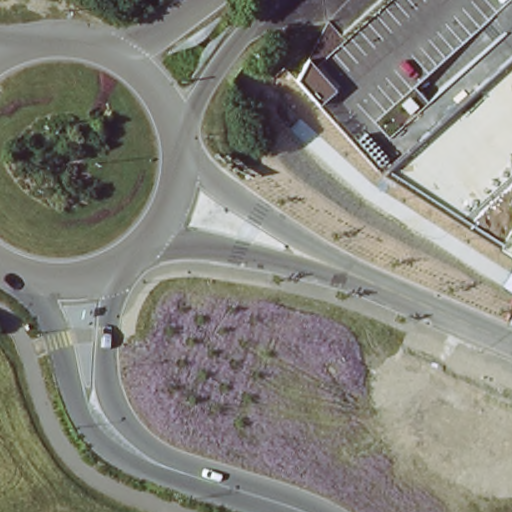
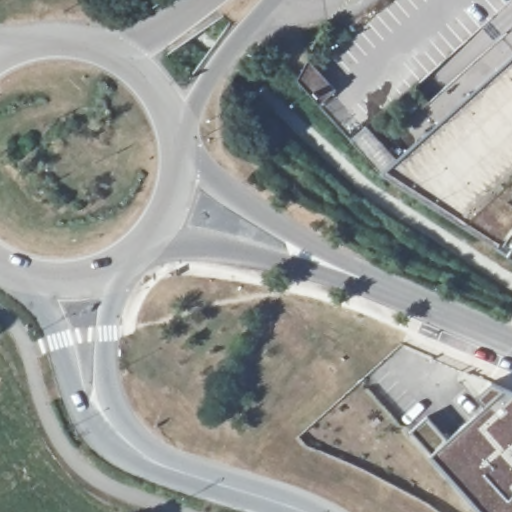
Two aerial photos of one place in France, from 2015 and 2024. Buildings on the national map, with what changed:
unchanged [(510,256),(384,175),(512,59),(512,257),(510,256)]
new [(450,441),(487,407),(478,398),(492,385),(512,391),(512,512),(481,512),(432,457),(413,432),(428,418),(450,441)]

